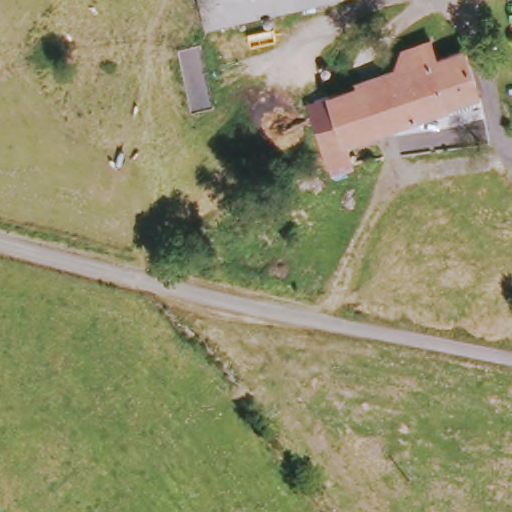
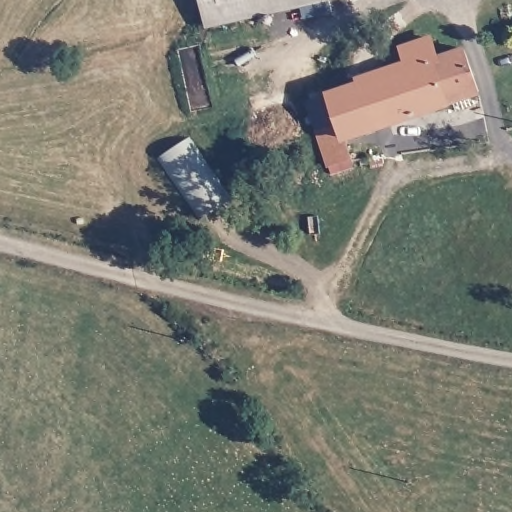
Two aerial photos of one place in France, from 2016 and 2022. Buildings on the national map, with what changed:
unchanged [(205,0),(336,0),(211,28),(205,0)]
unchanged [(437,56),(464,48),(478,90),(472,92),(475,102),(456,109),(453,99),(345,140),(351,162),(327,170),(316,135),(336,127),(326,97),(410,65),(405,44),(432,36),(437,56)]
new [(188,140),(229,200),(201,219),(160,158),(188,140)]

